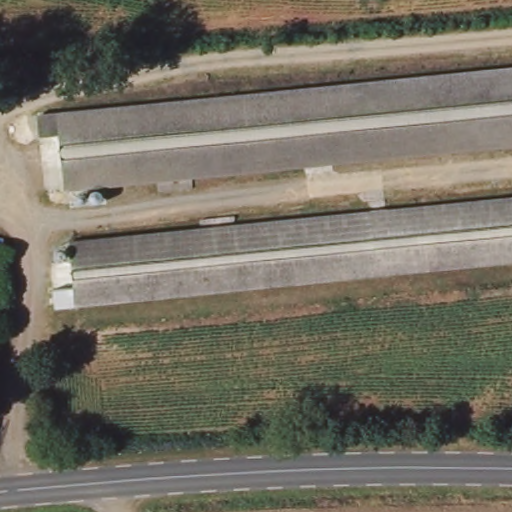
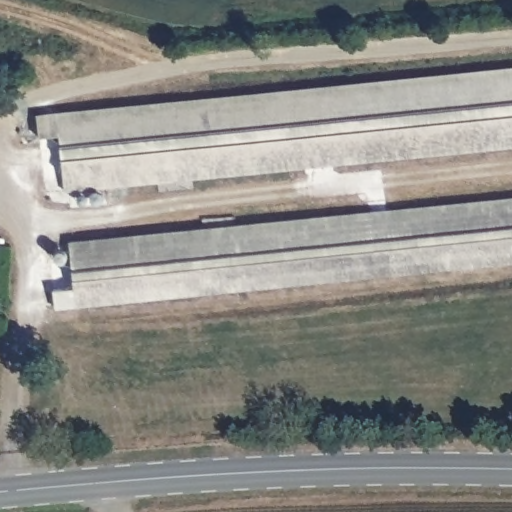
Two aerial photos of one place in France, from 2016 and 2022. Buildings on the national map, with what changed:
unchanged [(48,135),(46,114),(512,67),(512,144),(73,189),(67,133),(48,135)]
unchanged [(512,264),(79,308),(71,246),(512,201),(512,264)]

